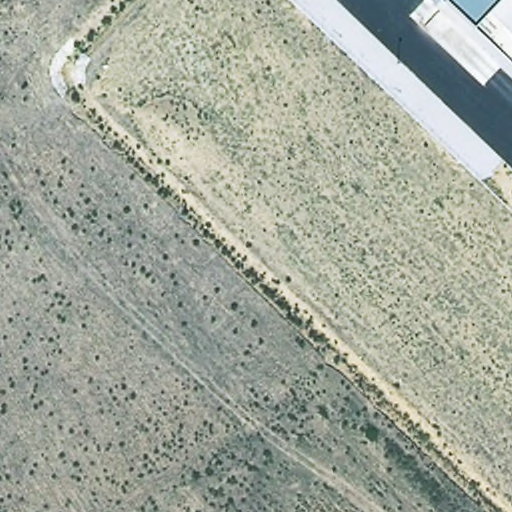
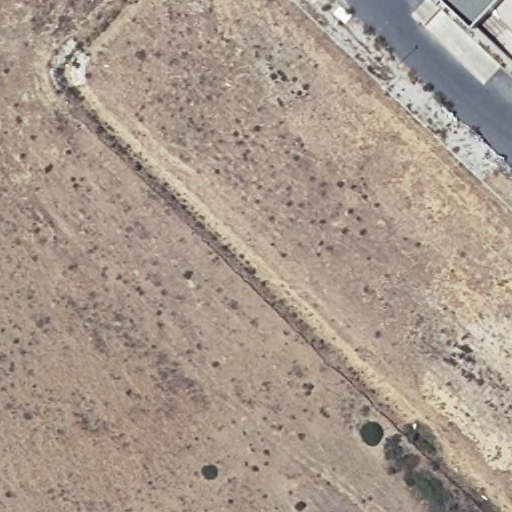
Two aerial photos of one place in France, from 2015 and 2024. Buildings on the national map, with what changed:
unchanged [(475,27),(446,0),(501,0),(475,27)]

